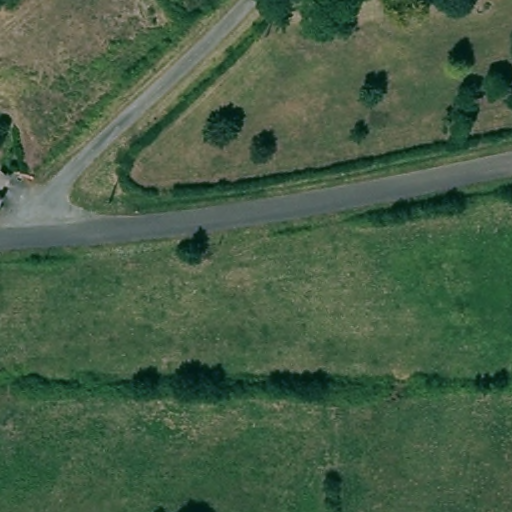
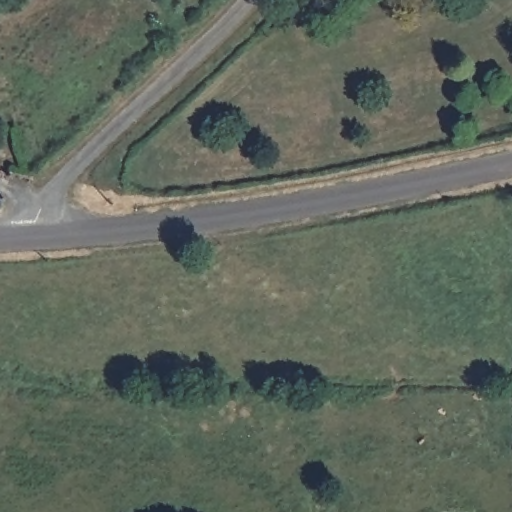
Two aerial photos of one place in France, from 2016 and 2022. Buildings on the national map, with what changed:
[]

